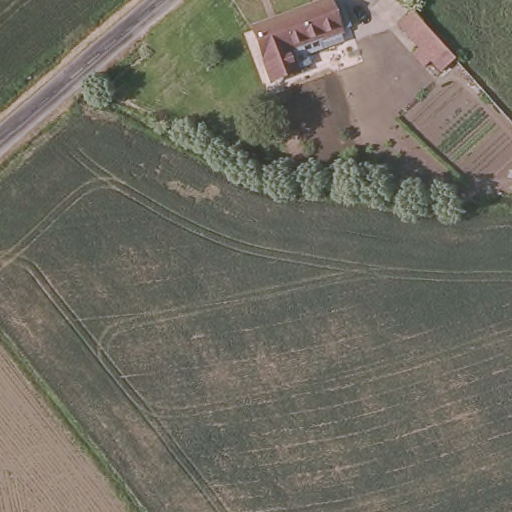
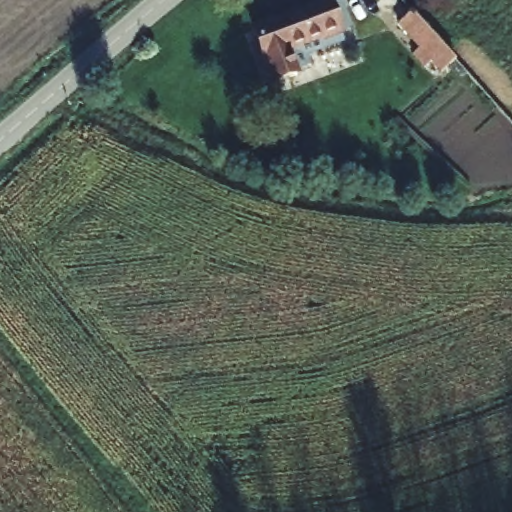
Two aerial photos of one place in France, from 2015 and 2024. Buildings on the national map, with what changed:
unchanged [(335,34),(317,42),(315,35),(283,47),(291,76),(268,84),(248,30),(319,0),(321,0),(335,34)]
unchanged [(452,63),(444,53),(437,59),(424,44),(430,37),(407,11),(419,2),(457,44),(465,52),(452,63)]

